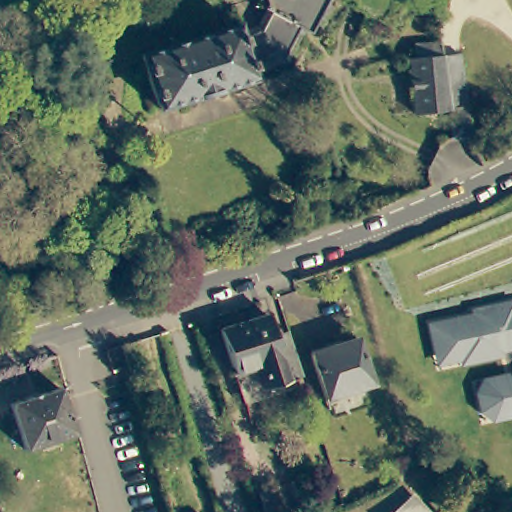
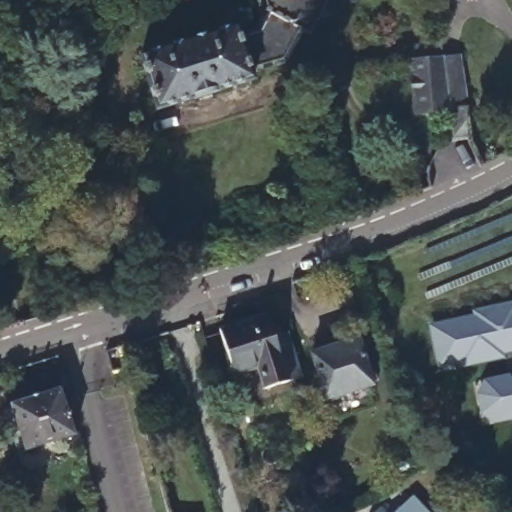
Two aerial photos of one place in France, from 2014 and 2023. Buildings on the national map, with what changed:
unchanged [(333,5),(335,7),(335,11),(333,14),(330,16),(327,17),(326,17),(315,36),(308,33),(303,30),(286,60),(250,70),(254,81),(156,112),(140,56),(235,25),(238,31),(258,25),(272,0),(335,0),(333,5)]
unchanged [(356,0),(414,0),(400,24),(356,0)]
unchanged [(450,142),(446,111),(412,115),(405,59),(440,56),(457,54),(463,105),(467,140),(450,142)]
unchanged [(500,345),(500,348),(468,355),(468,353),(445,358),(437,325),(481,315),(480,311),(512,304),(512,343),(500,345)]
unchanged [(245,398),(237,374),(231,375),(216,327),(265,312),(271,332),(286,328),(300,371),(249,386),(245,398)]
unchanged [(130,352),(111,358),(105,335),(124,328),(130,352)]
unchanged [(373,383),(328,396),(313,350),(360,336),(373,383)]
unchanged [(498,412),(487,405),(485,391),(491,380),(512,376),(512,409),(498,412)]
unchanged [(12,400),(61,384),(76,431),(27,447),(12,400)]
unchanged [(293,480),(303,512),(266,512),(258,490),(293,480)]
unchanged [(425,512),(404,512),(415,501),(425,512)]
unchanged [(203,512),(187,512),(202,508),(203,512)]

